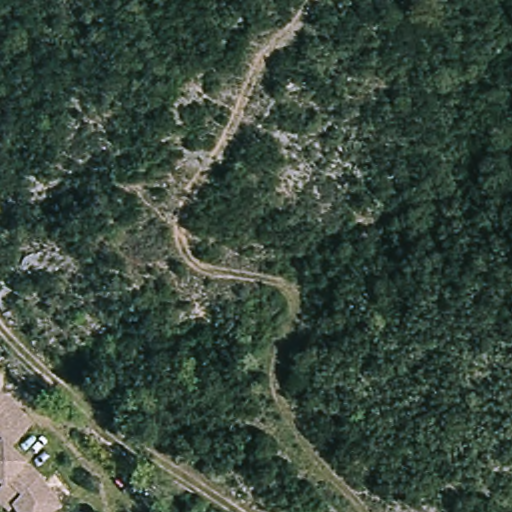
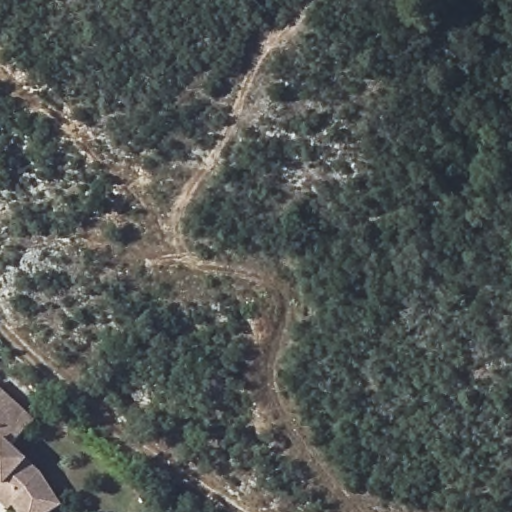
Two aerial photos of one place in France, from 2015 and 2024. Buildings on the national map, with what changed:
unchanged [(0,423),(0,381),(6,376),(27,401),(0,423)]
unchanged [(0,474),(0,423),(27,401),(43,420),(15,443),(41,475),(59,506),(47,512),(17,512),(10,500),(8,502),(0,493),(0,482),(4,479),(0,474)]

